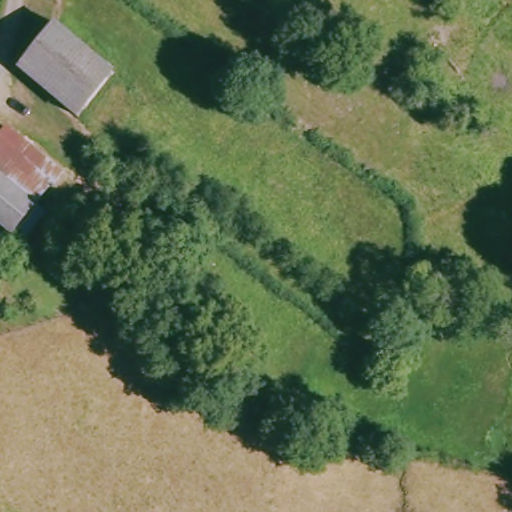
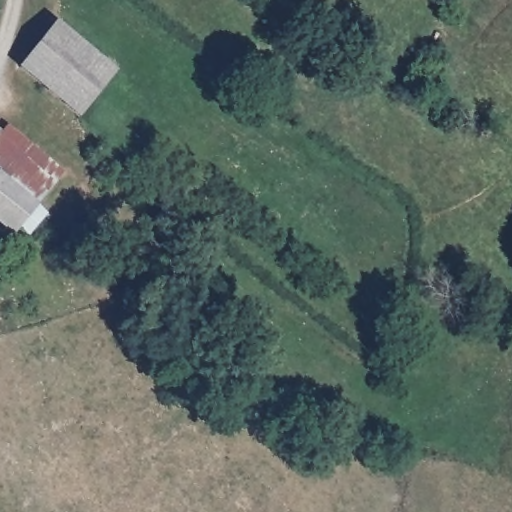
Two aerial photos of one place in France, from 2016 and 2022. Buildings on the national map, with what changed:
unchanged [(83,111),(28,63),(64,20),(120,69),(83,111)]
unchanged [(7,124),(70,182),(43,210),(0,170),(0,132),(7,124)]
unchanged [(43,210),(54,220),(31,247),(21,239),(0,221),(0,170),(43,210)]

